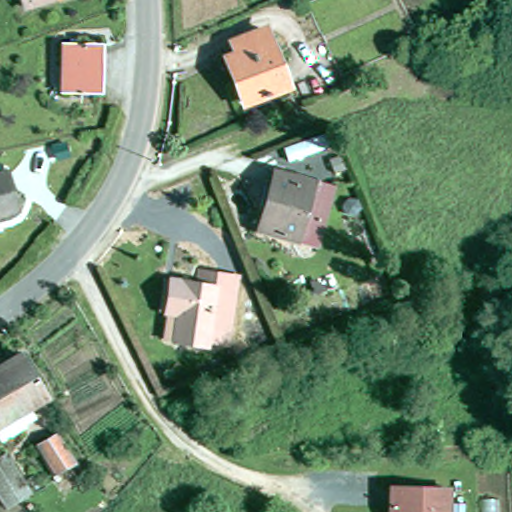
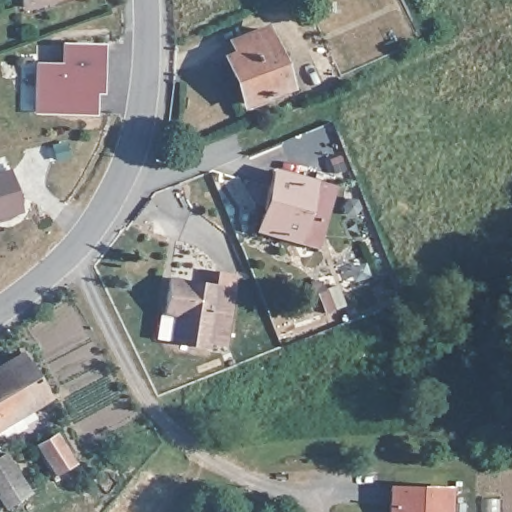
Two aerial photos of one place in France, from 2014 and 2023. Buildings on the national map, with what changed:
unchanged [(21,0),(63,0),(25,11),(21,0)]
unchanged [(246,104),(228,58),(250,49),(246,37),(265,30),(288,88),(246,104)]
unchanged [(98,46),(97,91),(63,91),(65,45),(98,46)]
new [(63,91),(95,91),(95,114),(35,111),(37,61),(64,61),(63,91)]
unchanged [(312,151),(320,153),(323,161),(315,168),(307,166),(305,157),(312,151)]
unchanged [(0,214),(0,174),(7,172),(17,210),(0,214)]
unchanged [(265,235),(280,177),(338,193),(322,252),(265,235)]
unchanged [(173,318),(172,318),(176,286),(203,290),(205,278),(242,283),(233,350),(215,347),(214,352),(180,346),(169,344),(173,318)]
unchanged [(0,438),(0,370),(23,356),(48,397),(30,409),(35,418),(25,424),(18,431),(1,439),(0,438)]
unchanged [(57,435),(75,465),(54,477),(35,448),(57,435)]
unchanged [(36,499),(15,512),(13,512),(0,492),(0,465),(10,459),(36,499)]
unchanged [(465,512),(392,512),(392,488),(450,489),(450,504),(465,504),(465,512)]

